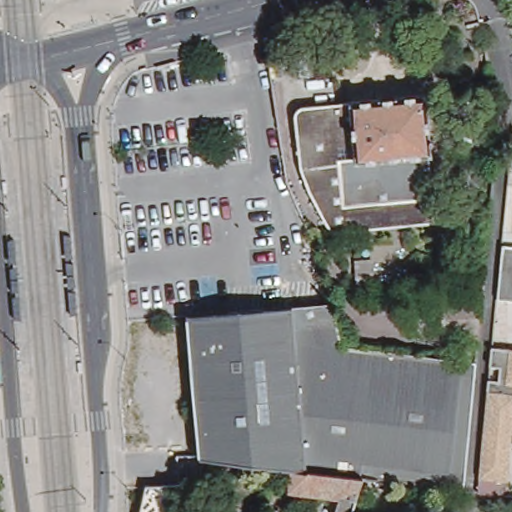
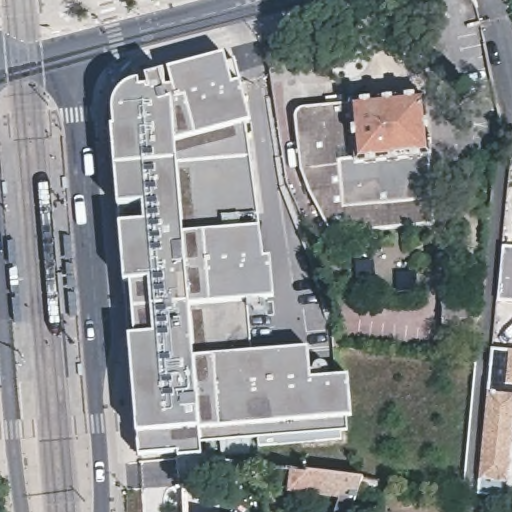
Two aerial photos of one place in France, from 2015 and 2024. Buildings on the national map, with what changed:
new [(170,70),(224,54),(232,85),(240,82),(249,121),(175,140),(170,70)]
new [(175,140),(183,234),(189,304),(193,357),(199,429),(200,437),(201,454),(179,456),(179,451),(138,455),(136,433),(111,116),(113,106),(114,99),(118,93),(123,88),(132,82),(170,70),(175,140)]
unchanged [(432,152),(428,152),(431,219),(338,224),(334,224),(331,224),(327,223),(322,218),(305,183),(302,171),(300,161),(293,111),(294,105),(295,102),(297,100),(299,100),(427,90),(432,152)]
new [(175,140),(249,121),(261,226),(183,234),(175,140)]
new [(183,234),(261,226),(264,257),(271,256),(274,297),(249,299),(189,304),(183,234)]
unchanged [(512,248),(512,300),(500,298),(504,247),(512,248)]
demolished [(362,481),(309,474),(205,461),(201,460),(200,456),(196,398),(194,368),(190,306),(330,297),(344,352),(476,365),(463,493),(362,481)]
new [(189,304),(249,299),(254,351),(193,357),(189,304)]
new [(200,437),(199,429),(193,357),(254,351),(309,347),(311,378),(349,374),(352,416),(348,416),(348,427),(200,437)]
unchanged [(488,349),(512,351),(512,441),(506,484),(477,481),(488,349)]
unchanged [(334,512),(340,499),(305,493),(309,474),(362,481),(352,512),(334,512)]
unchanged [(140,512),(146,486),(182,484),(182,512),(140,512)]

